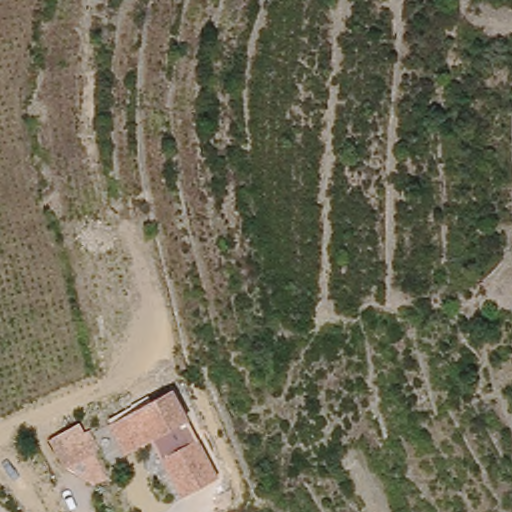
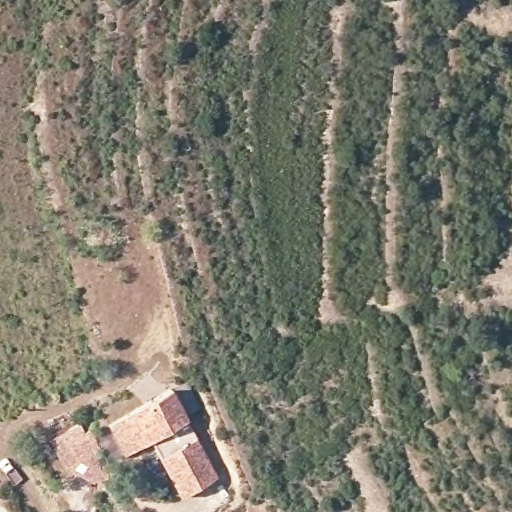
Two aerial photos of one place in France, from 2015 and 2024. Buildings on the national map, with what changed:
unchanged [(97,410),(106,424),(168,388),(185,422),(150,441),(126,456),(113,439),(67,471),(46,438),(97,410)]
unchanged [(150,441),(185,422),(217,480),(178,500),(150,441)]

